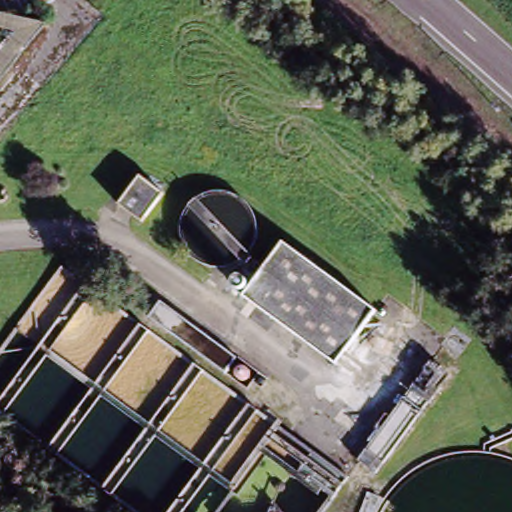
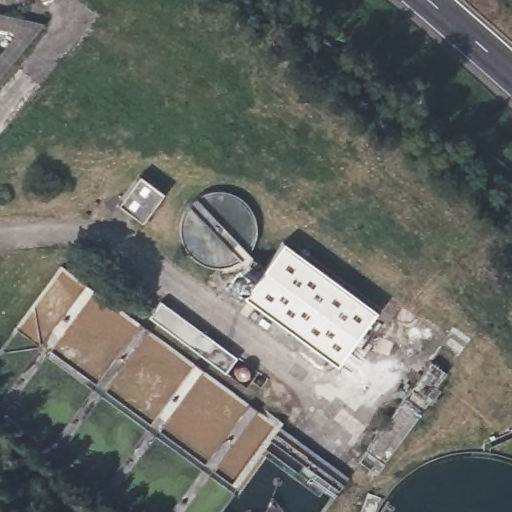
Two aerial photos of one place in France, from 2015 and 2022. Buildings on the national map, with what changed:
unchanged [(115,205),(138,177),(163,196),(141,224),(115,205)]
unchanged [(374,310),(336,363),(242,297),(281,242),(374,310)]
unchanged [(354,461),(428,362),(448,376),(374,475),(354,461)]

